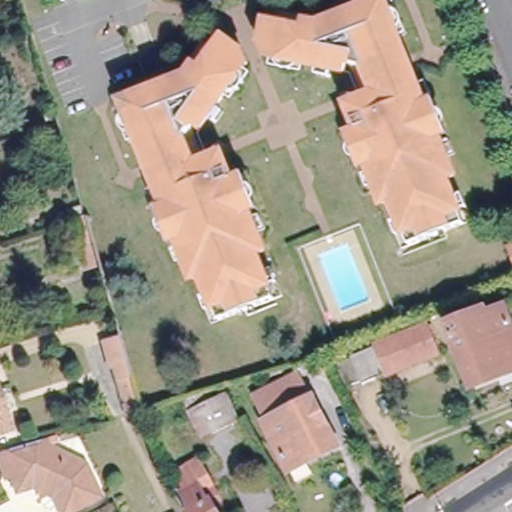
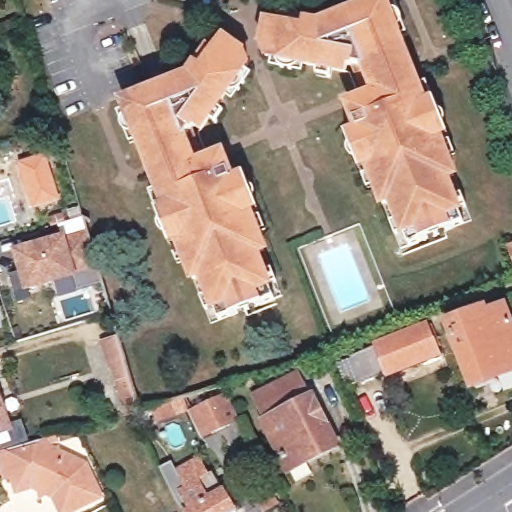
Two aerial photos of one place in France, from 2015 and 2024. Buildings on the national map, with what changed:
unchanged [(353,167),(340,132),(349,128),(353,127),(344,103),(357,97),(360,103),(363,102),(355,78),(350,62),(339,63),(337,70),(329,69),(327,77),(314,74),(315,66),(261,55),(257,43),(263,19),(279,22),(280,15),(295,18),(328,25),(331,16),(372,0),(380,0),(381,3),(390,0),(395,13),(386,16),(388,22),(396,18),(402,32),(393,35),(412,83),(420,79),(425,93),(417,96),(419,101),(427,98),(441,133),(432,136),(435,142),(442,139),(447,151),(440,154),(447,174),(440,177),(456,221),(401,243),(384,199),(376,202),(369,182),(360,185),(355,172),(364,168),(362,164),(353,167)]
unchanged [(176,246),(185,242),(183,238),(175,241),(160,205),(169,201),(166,196),(158,200),(154,187),(162,184),(144,136),(135,139),(129,126),(138,122),(136,117),(128,121),(122,107),(131,105),(129,99),(177,80),(185,85),(202,61),(214,45),(220,49),(229,37),(250,52),(254,60),(221,106),(229,111),(221,121),(214,116),(206,127),(199,121),(192,126),(199,143),(207,165),(211,163),(209,158),(224,153),(233,176),(237,175),(246,172),(260,207),(251,211),(253,216),(261,213),(266,225),(258,228),(266,249),(259,251),(276,296),(221,318),(202,272),(197,274),(190,255),(181,258),(176,246)]
new [(45,151),(61,199),(31,208),(17,161),(45,151)]
new [(97,268),(76,276),(25,290),(12,249),(67,233),(85,230),(97,268)]
unchanged [(509,247),(512,246),(512,254),(509,247)]
unchanged [(445,327),(485,311),(486,314),(502,308),(512,332),(512,370),(468,387),(445,327)]
unchanged [(430,322),(441,350),(391,371),(379,342),(430,322)]
unchanged [(112,366),(107,367),(100,343),(116,339),(137,412),(131,413),(126,415),(112,366)]
unchanged [(391,371),(367,380),(365,378),(350,384),(341,360),(356,354),(355,351),(378,343),(379,342),(391,371)]
unchanged [(315,397),(337,444),(289,468),(266,421),(270,419),(261,404),(256,393),(300,373),(305,383),(312,398),(315,397)]
unchanged [(0,428),(0,382),(14,422),(0,428)]
unchanged [(190,416),(222,400),(234,424),(200,439),(190,416)]
unchanged [(65,502),(62,493),(39,481),(21,486),(17,470),(10,471),(9,465),(3,447),(35,438),(51,433),(54,443),(90,461),(105,493),(84,503),(68,511),(65,502)]
unchanged [(0,448),(0,437),(3,447),(0,448)]
unchanged [(202,481),(213,499),(215,498),(222,512),(194,512),(184,493),(202,481)]

